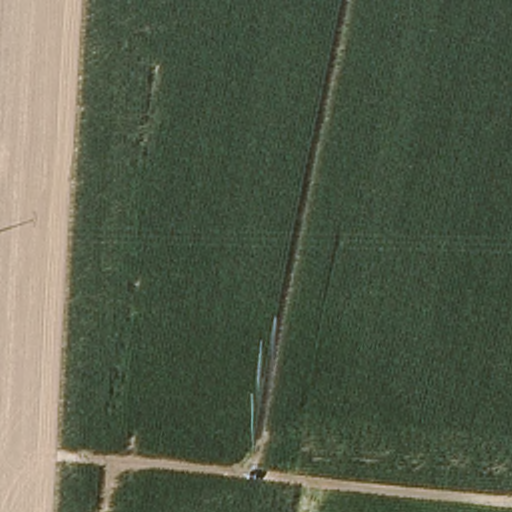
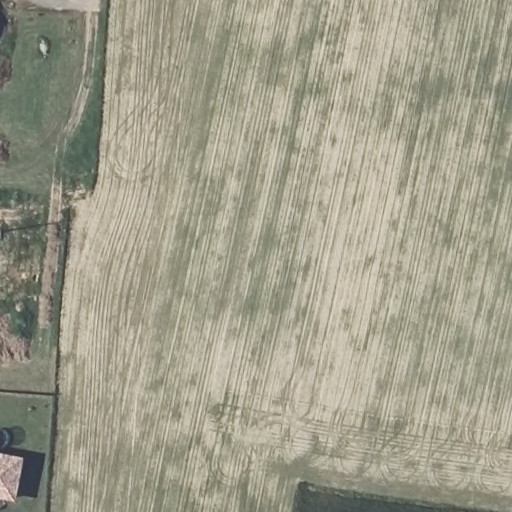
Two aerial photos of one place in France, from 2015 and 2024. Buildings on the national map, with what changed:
new [(19,461),(11,498),(0,496),(0,457),(19,461)]

